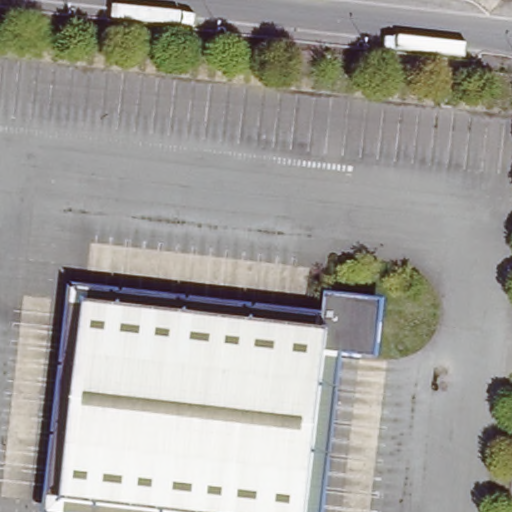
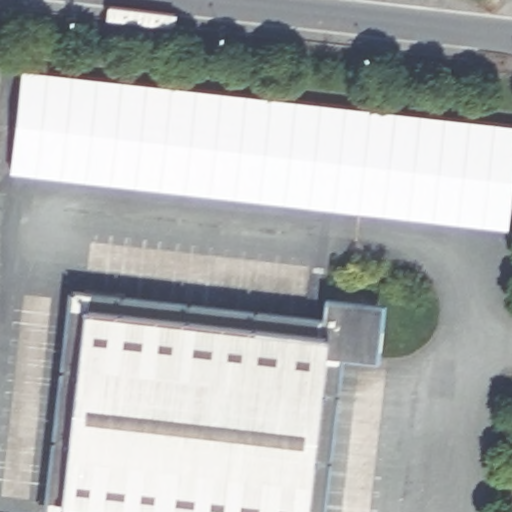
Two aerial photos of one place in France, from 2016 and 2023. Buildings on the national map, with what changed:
new [(8,170),(19,66),(512,123),(512,201),(510,227),(8,170)]
unchanged [(320,325),(324,298),(358,302),(372,316),(367,347),(354,354),(325,351),(306,512),(162,512),(67,501),(90,298),(320,325)]

